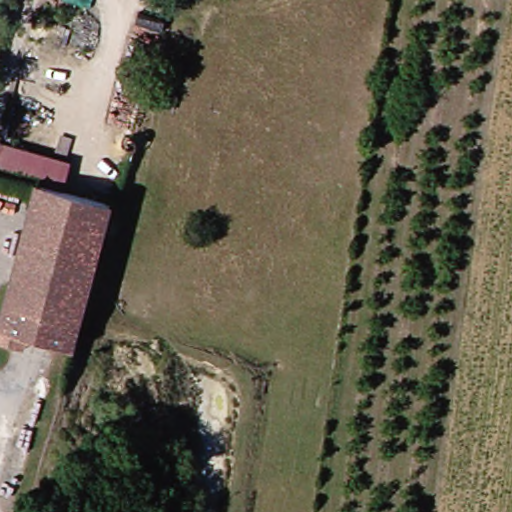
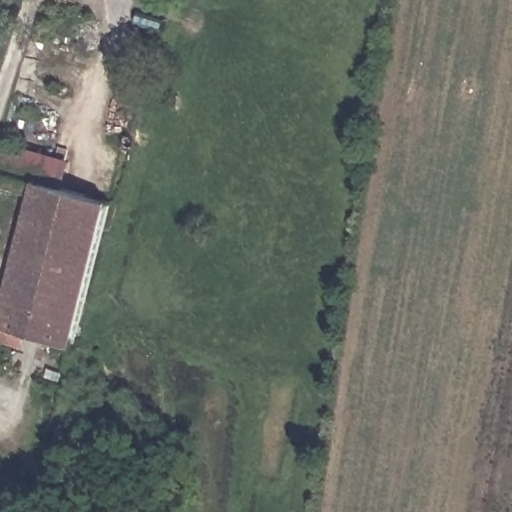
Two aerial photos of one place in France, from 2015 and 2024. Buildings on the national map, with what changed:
unchanged [(48,185),(2,171),(9,142),(78,164),(71,190),(48,185)]
unchanged [(19,347),(3,342),(48,185),(71,190),(120,205),(79,350),(33,337),(30,350),(19,347)]

